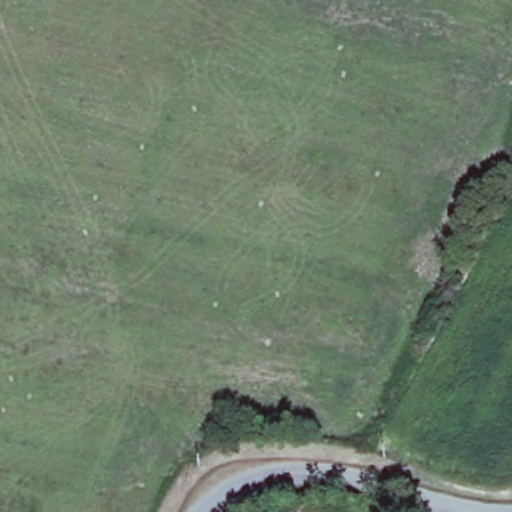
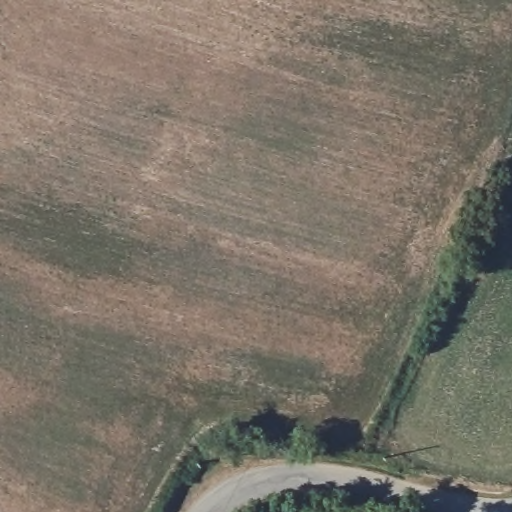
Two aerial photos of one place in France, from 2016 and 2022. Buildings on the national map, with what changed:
[]

